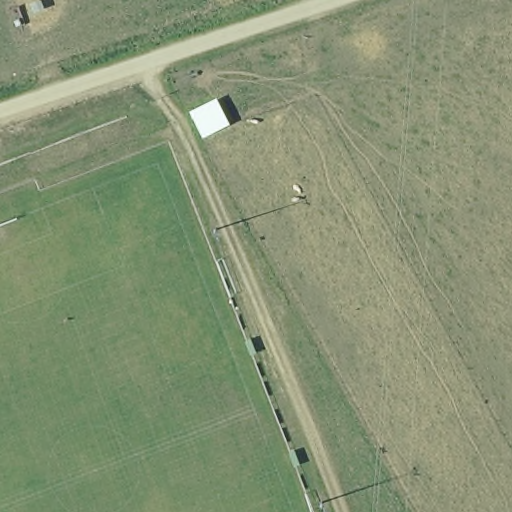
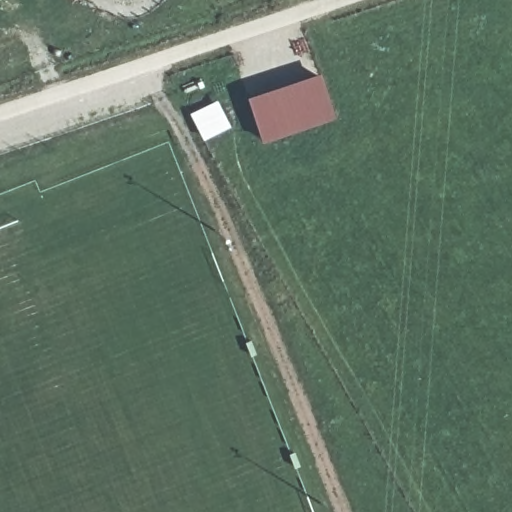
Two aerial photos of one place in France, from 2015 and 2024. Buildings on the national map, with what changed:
new [(245,96),(320,72),(334,117),(260,141),(245,96)]
unchanged [(223,123),(198,133),(190,107),(213,100),(223,123)]

